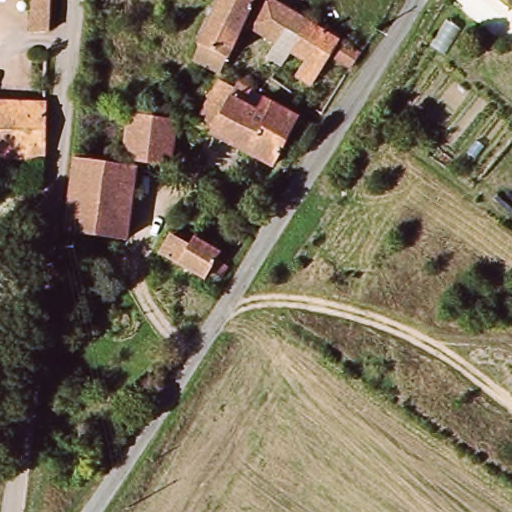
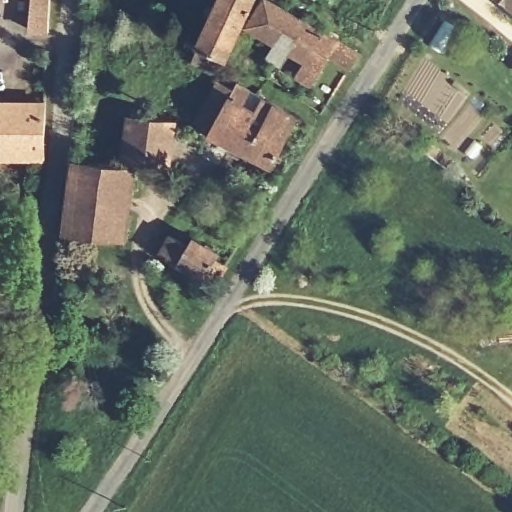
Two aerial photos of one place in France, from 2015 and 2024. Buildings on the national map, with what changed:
unchanged [(45,32),(28,31),(30,0),(48,0),(45,32)]
unchanged [(196,49),(194,46),(211,0),(249,0),(226,58),(218,74),(190,63),(196,49)]
unchanged [(284,62),(279,72),(266,65),(271,52),(244,38),(261,0),(263,0),(303,22),(284,62)]
unchanged [(512,12),(496,0),(512,0),(512,12)]
unchanged [(355,52),(345,67),(326,58),(310,88),(297,81),(302,71),(284,62),(303,22),(355,52)]
unchanged [(242,95),(259,103),(254,113),(266,119),(270,108),(295,121),(270,167),(194,127),(216,87),(240,100),(242,95)]
unchanged [(41,105),(36,156),(0,156),(0,104),(41,105)]
unchanged [(121,155),(128,113),(181,119),(171,163),(121,155)]
unchanged [(121,236),(61,233),(69,163),(128,164),(121,236)]
unchanged [(212,274),(208,280),(156,250),(166,232),(181,241),(187,232),(220,253),(216,260),(226,267),(219,278),(212,274)]

